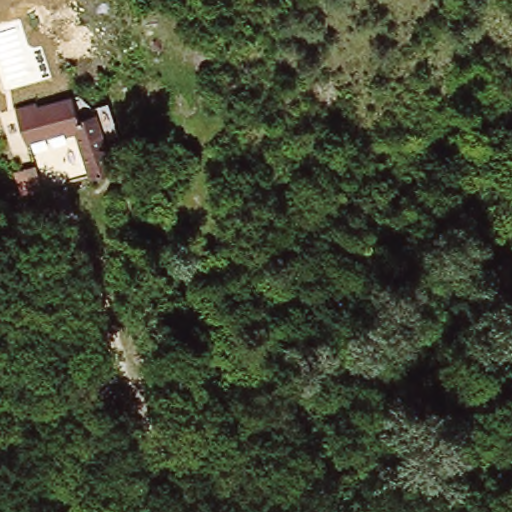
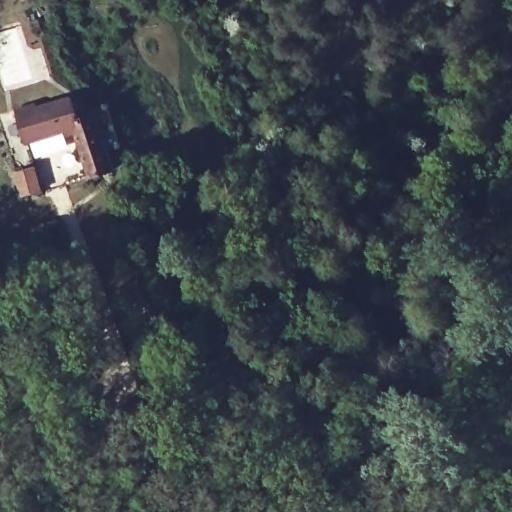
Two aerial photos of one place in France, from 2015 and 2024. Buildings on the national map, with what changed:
unchanged [(121,169),(93,179),(79,135),(71,138),(68,134),(29,148),(18,116),(38,109),(39,111),(67,102),(75,100),(80,115),(102,110),(121,169)]
unchanged [(38,164),(44,186),(19,192),(14,169),(38,164)]

